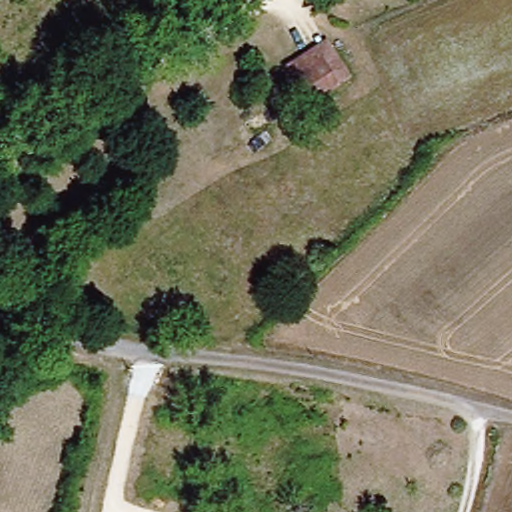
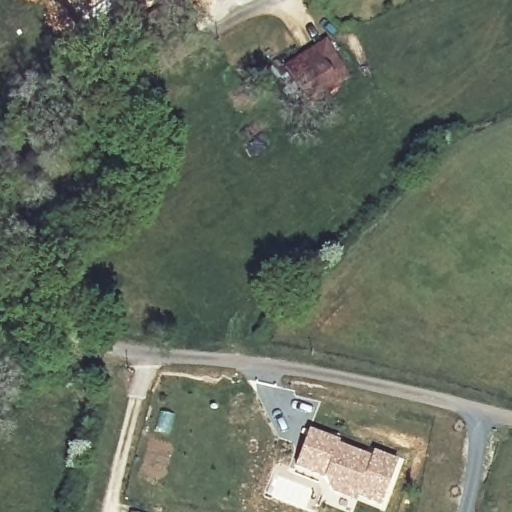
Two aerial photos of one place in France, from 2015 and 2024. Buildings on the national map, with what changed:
unchanged [(317,52),(330,43),(351,80),(306,103),(281,54),(308,38),(317,52)]
new [(308,427),(371,453),(373,448),(399,459),(381,508),(336,491),(293,467),(308,427)]

